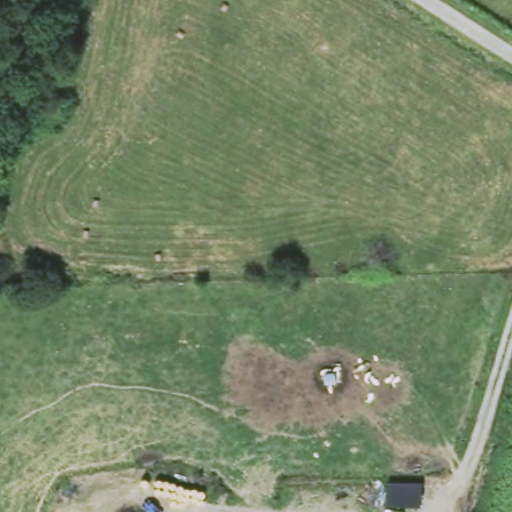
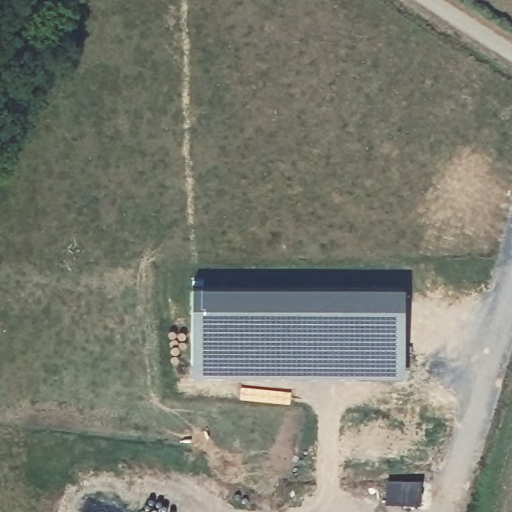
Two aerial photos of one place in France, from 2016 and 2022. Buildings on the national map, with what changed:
new [(407,289),(407,378),(194,378),(194,289),(407,289)]
new [(426,504),(393,506),(392,485),(426,483),(426,504)]

